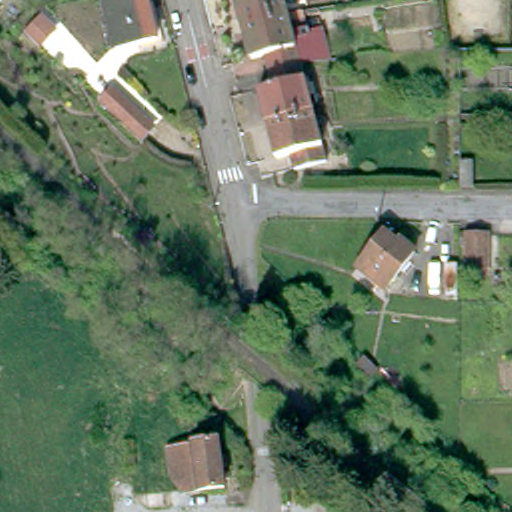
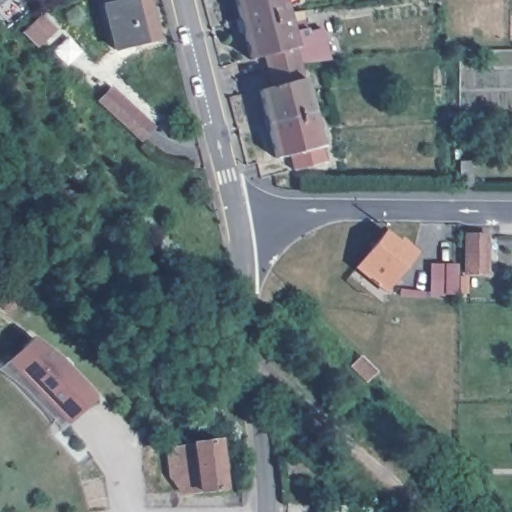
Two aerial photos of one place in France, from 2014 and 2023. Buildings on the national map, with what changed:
unchanged [(285,0),(288,9),(250,19),(243,21),(237,0),(285,0)]
unchanged [(266,51),(251,55),(243,21),(250,19),(288,9),(294,36),(301,60),(270,66),(266,51)]
unchanged [(259,86),(274,81),(270,66),(301,60),(314,108),(274,118),(269,119),(259,86)]
unchanged [(142,136),(117,114),(99,98),(108,87),(126,103),(153,126),(142,136)]
unchanged [(293,150),(278,154),(269,119),(274,118),(314,108),(314,111),(327,158),(297,166),(293,150)]
unchanged [(461,161),(475,161),(474,187),(461,186),(461,161)]
unchanged [(479,231),(478,269),(458,269),(459,231),(479,231)]
unchanged [(397,244),(400,241),(415,253),(387,290),(359,268),(386,235),(397,244)]
new [(58,354),(95,398),(68,423),(6,361),(33,336),(58,354)]
unchanged [(221,461),(226,460),(226,467),(221,468),(223,473),(228,473),(228,480),(223,481),(224,488),(183,494),(171,476),(167,450),(176,449),(178,446),(218,440),(221,461)]
unchanged [(136,496),(146,495),(161,494),(163,507),(147,508),(138,509),(136,496)]

